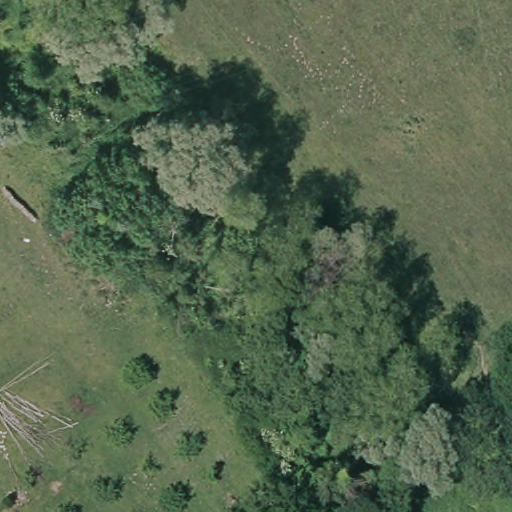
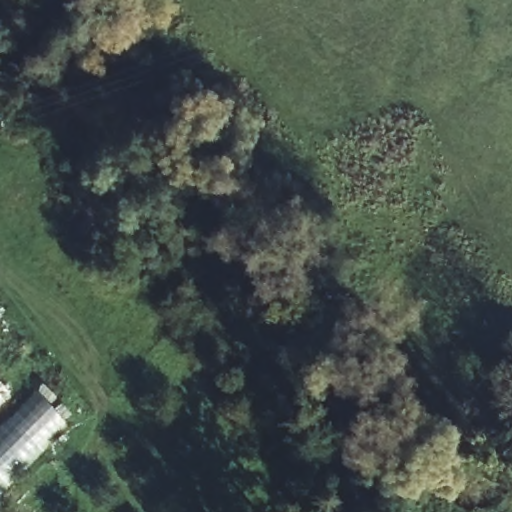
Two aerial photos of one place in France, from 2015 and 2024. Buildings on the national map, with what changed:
new [(0,492),(0,427),(37,391),(68,425),(0,492)]
new [(0,406),(0,394),(6,401),(0,406)]

